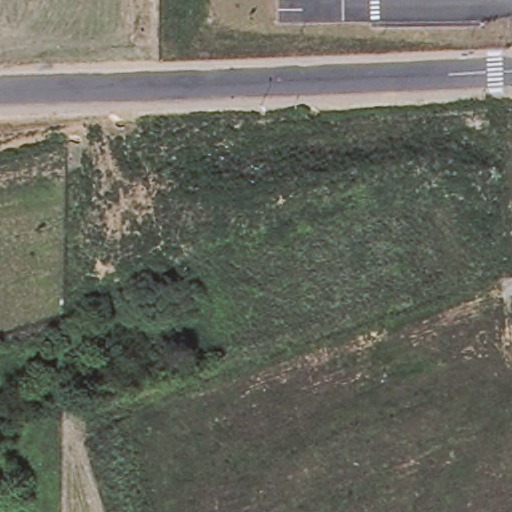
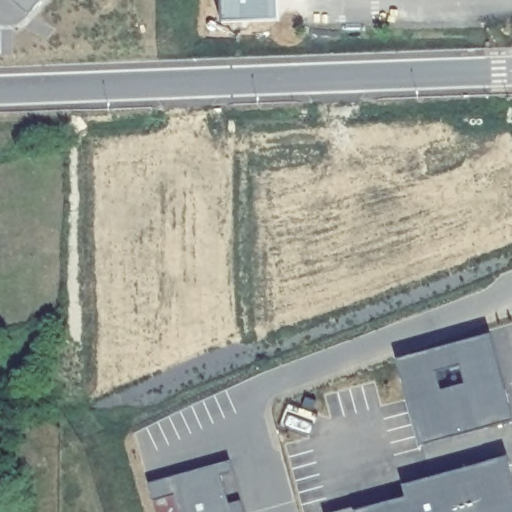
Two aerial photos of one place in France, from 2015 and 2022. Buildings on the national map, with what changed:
new [(27,12),(15,0),(40,0),(27,12)]
new [(278,22),(220,22),(220,0),(277,0),(278,22)]
new [(492,336),(512,419),(416,442),(395,361),(492,336)]
new [(355,512),(405,501),(400,485),(508,456),(512,471),(512,512),(330,512),(354,510),(355,512)]
new [(230,473),(219,475),(225,505),(240,500),(243,512),(155,512),(146,479),(227,463),(230,473)]

